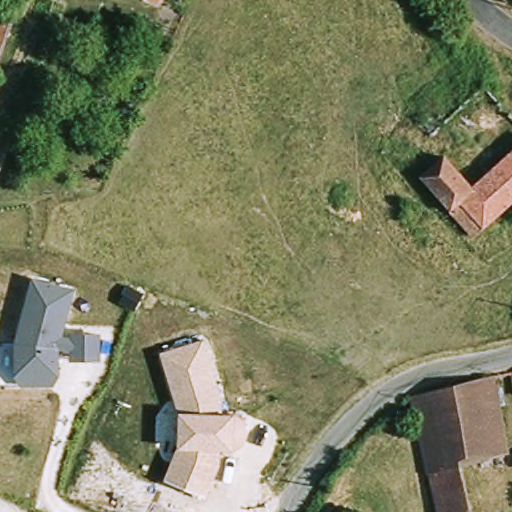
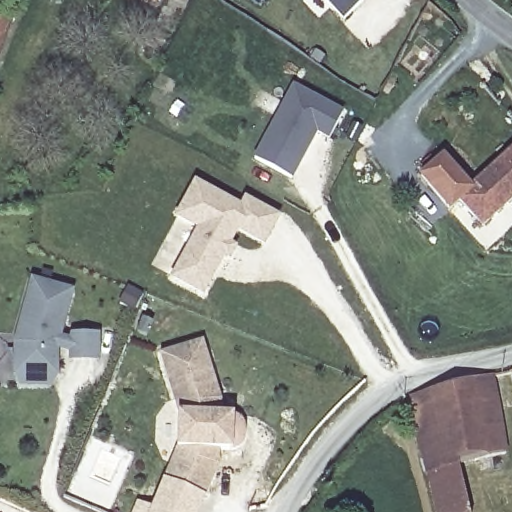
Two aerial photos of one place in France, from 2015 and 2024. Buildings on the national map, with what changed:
unchanged [(135,0),(160,0),(152,10),(135,0)]
new [(327,0),(365,0),(345,19),(327,0)]
unchanged [(12,20),(0,50),(0,17),(12,20)]
new [(317,132),(292,178),(254,159),(294,83),(343,110),(329,137),(317,132)]
unchanged [(421,174),(446,151),(473,184),(512,150),(512,205),(484,230),(473,239),(448,214),(453,210),(421,174)]
new [(228,257),(223,254),(202,293),(174,277),(200,227),(178,216),(196,182),(242,207),(246,199),(277,216),(263,242),(237,228),(229,244),(234,246),(228,257)]
unchanged [(14,376),(15,337),(32,276),(75,288),(63,333),(102,332),(102,360),(67,360),(67,351),(59,351),(61,375),(54,387),(21,387),(14,376)]
unchanged [(242,416),(247,422),(249,430),(247,439),(242,446),(232,448),(222,448),(221,465),(207,498),(165,476),(180,447),(179,410),(161,352),(204,339),(232,410),(242,416)]
unchanged [(512,372),(512,387),(510,372),(512,372)]
unchanged [(499,446),(458,453),(423,460),(411,395),(487,381),(499,446)]
unchanged [(458,453),(471,512),(435,512),(423,460),(458,453)]

